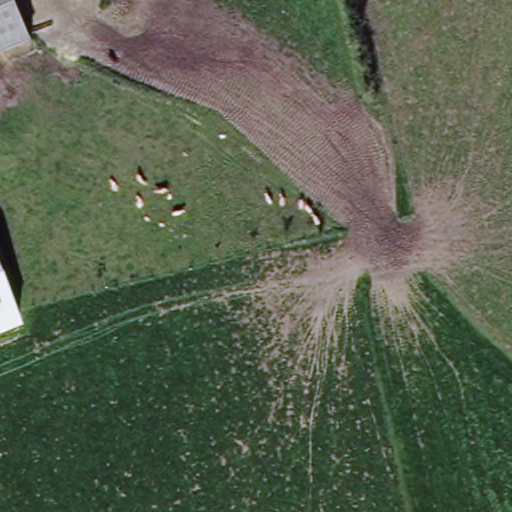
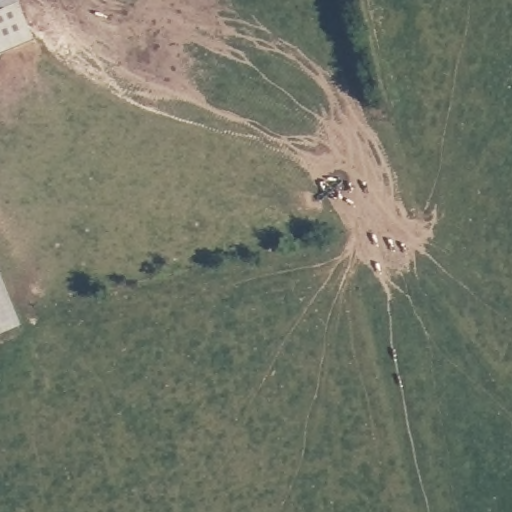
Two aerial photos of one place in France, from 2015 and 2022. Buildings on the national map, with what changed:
unchanged [(0,56),(0,0),(11,0),(29,44),(0,56)]
unchanged [(0,334),(0,276),(22,325),(0,334)]

